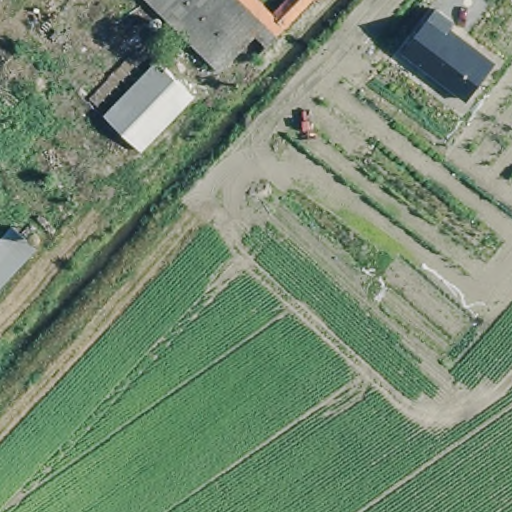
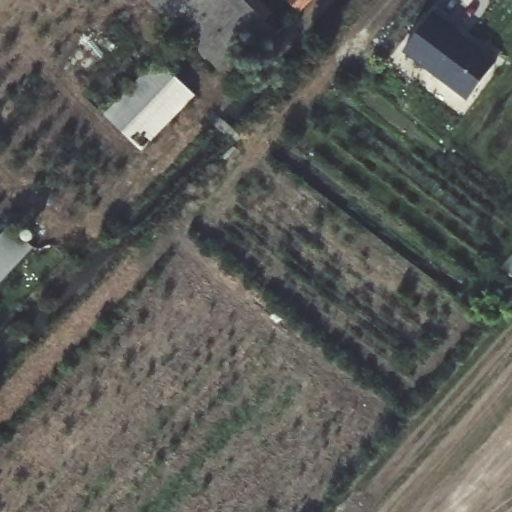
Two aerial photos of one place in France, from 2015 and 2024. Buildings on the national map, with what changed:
unchanged [(277,16),(290,28),(264,56),(249,44),(214,80),(177,45),(162,59),(151,48),(166,32),(140,6),(142,3),(139,0),(260,0),(277,16)]
unchanged [(290,28),(277,16),(293,0),(317,0),(290,28)]
unchanged [(437,5),(456,20),(451,29),(497,65),(470,101),(402,51),(437,5)]
unchanged [(107,113),(157,62),(196,96),(143,148),(107,113)]
unchanged [(36,249),(0,286),(0,236),(12,224),(36,249)]

